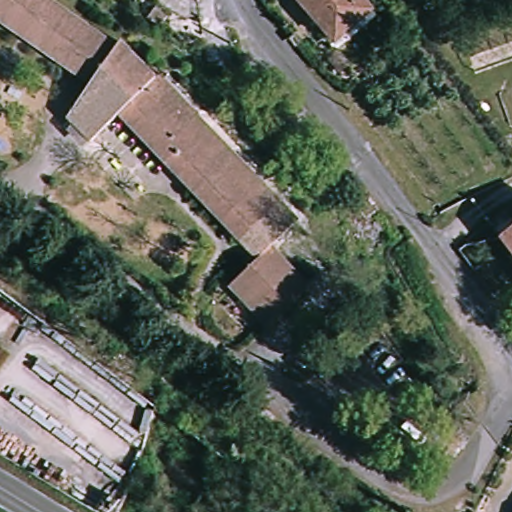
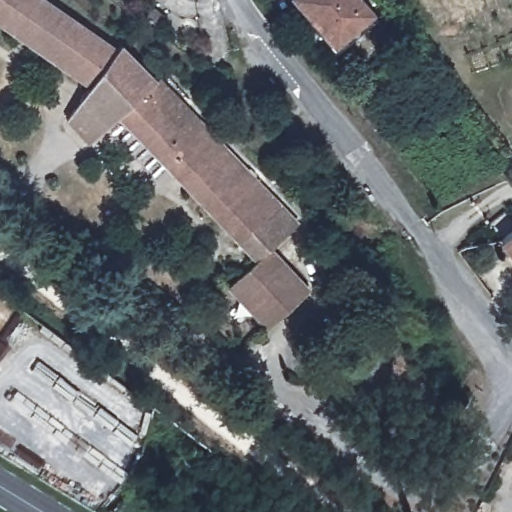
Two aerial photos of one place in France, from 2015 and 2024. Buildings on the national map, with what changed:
unchanged [(242,326),(226,307),(238,299),(227,286),(253,261),(150,153),(138,164),(101,129),(91,141),(66,119),(87,85),(0,25),(0,0),(56,0),(120,43),(156,77),(145,87),(181,127),(199,112),(301,222),(273,244),(306,284),(266,325),(255,314),(242,326)]
unchanged [(297,0),(365,0),(374,11),(335,45),(297,0)]
unchanged [(372,202),(377,210),(368,216),(362,208),(372,202)]
unchanged [(512,253),(502,241),(512,233),(512,253)]

